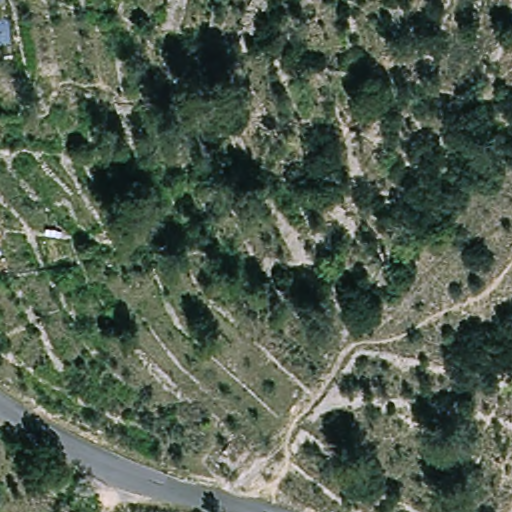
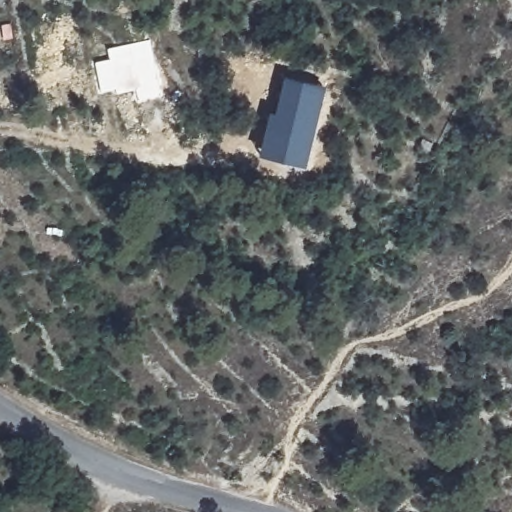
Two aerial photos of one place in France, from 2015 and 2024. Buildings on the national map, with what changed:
unchanged [(4,5),(0,5),(0,0),(5,0),(4,5)]
new [(138,99),(136,89),(115,93),(115,87),(100,90),(95,61),(110,58),(107,47),(149,39),(160,94),(138,99)]
new [(258,153),(268,110),(274,112),(283,76),(325,86),(305,165),(258,153)]

